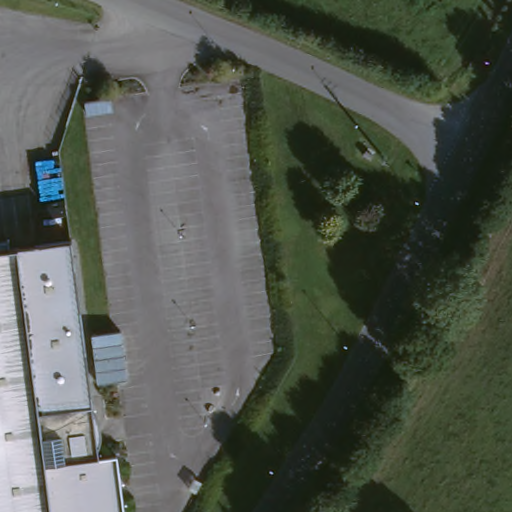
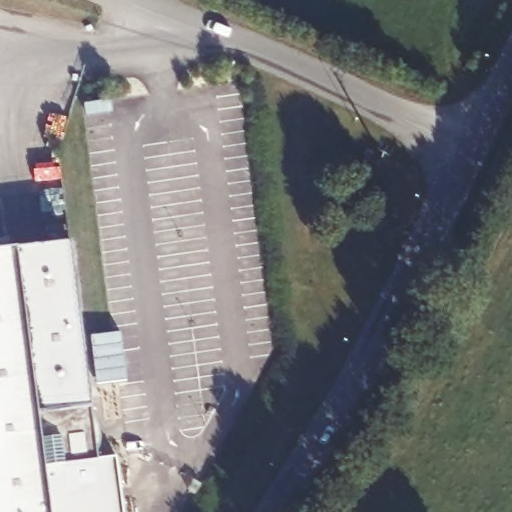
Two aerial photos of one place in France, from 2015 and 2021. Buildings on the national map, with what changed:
unchanged [(14,242),(70,235),(96,453),(115,452),(123,512),(0,512),(0,234),(13,233),(14,242)]

